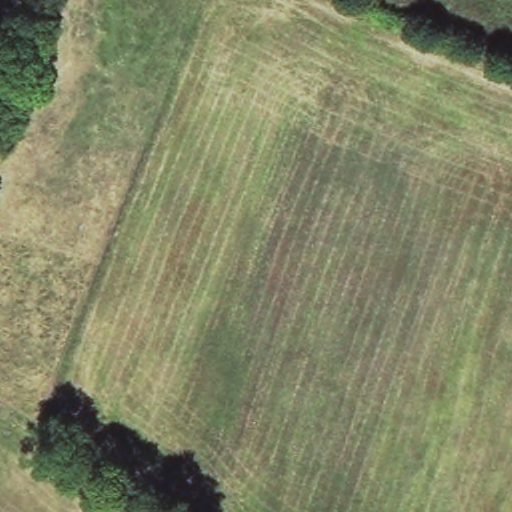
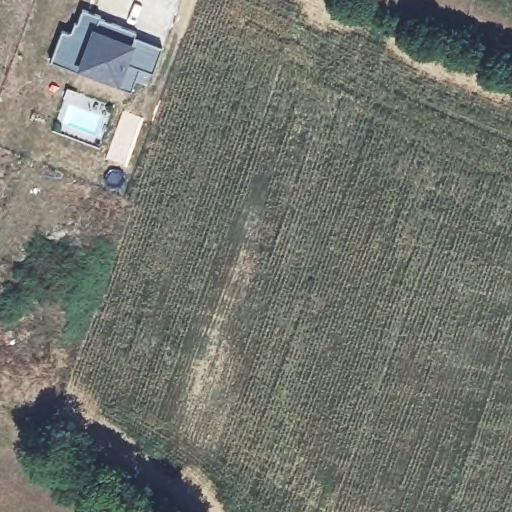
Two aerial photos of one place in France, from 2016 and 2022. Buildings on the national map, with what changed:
new [(102,3),(101,14),(99,17),(138,32),(137,37),(162,46),(152,72),(148,83),(135,79),(132,90),(117,84),(118,83),(81,69),(79,71),(52,59),(63,31),(72,33),(75,22),(79,24),(84,9),(102,3)]

